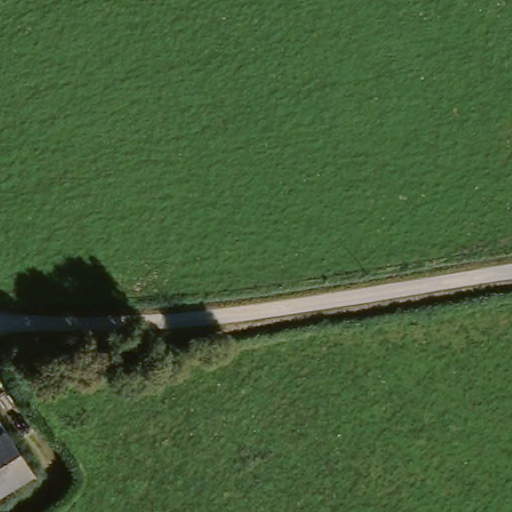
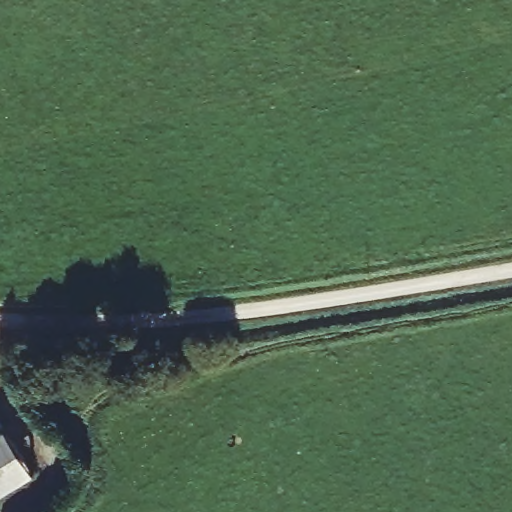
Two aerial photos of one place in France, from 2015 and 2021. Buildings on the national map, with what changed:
unchanged [(26,473),(0,487),(0,428),(1,427),(26,473)]

